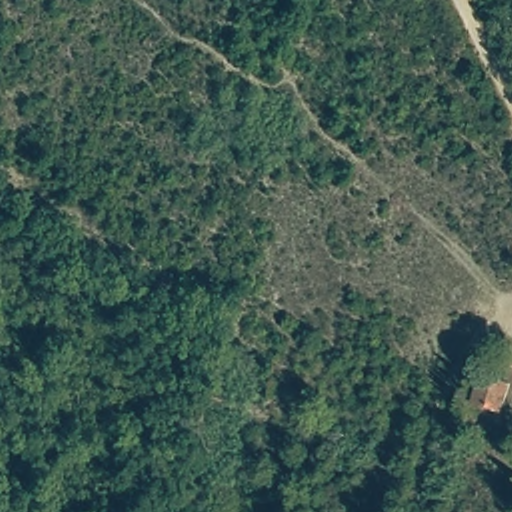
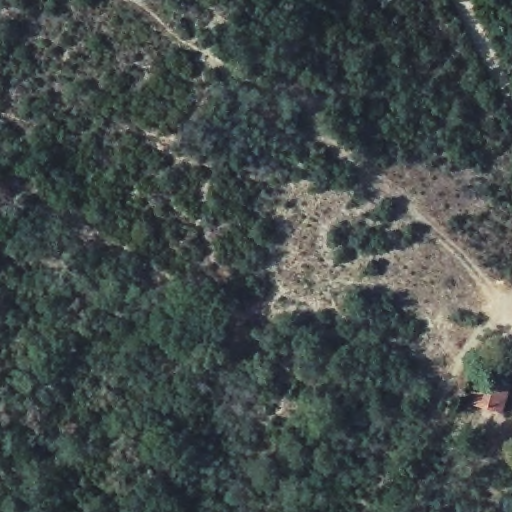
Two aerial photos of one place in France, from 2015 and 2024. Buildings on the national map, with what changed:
unchanged [(477,379),(508,383),(503,414),(471,409),(477,379)]

